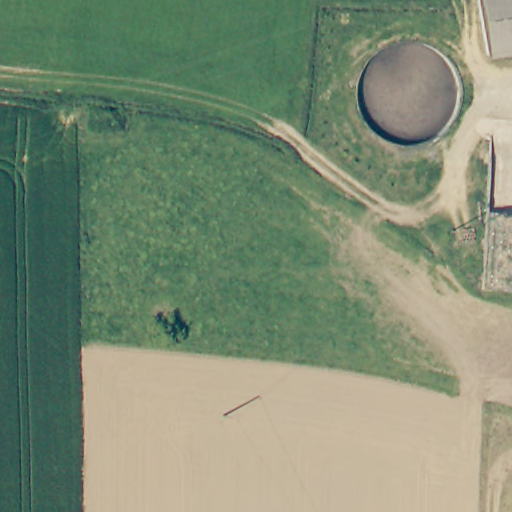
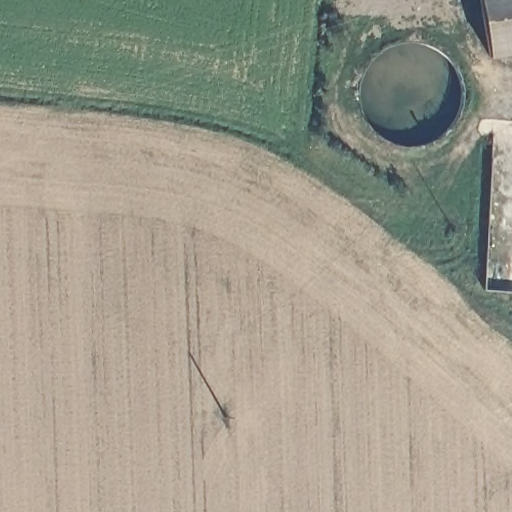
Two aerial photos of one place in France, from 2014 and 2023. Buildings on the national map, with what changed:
unchanged [(489,57),(479,0),(512,0),(512,53),(489,57)]

